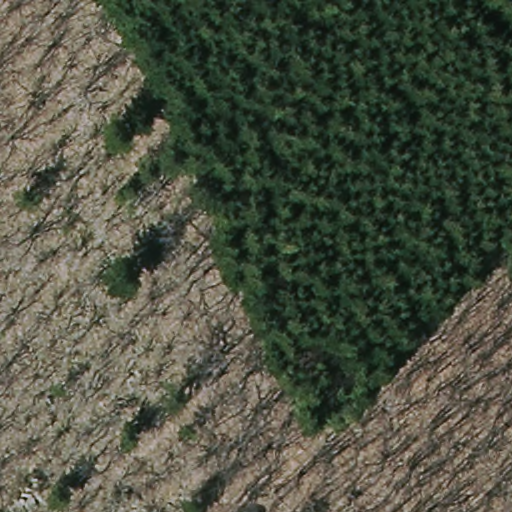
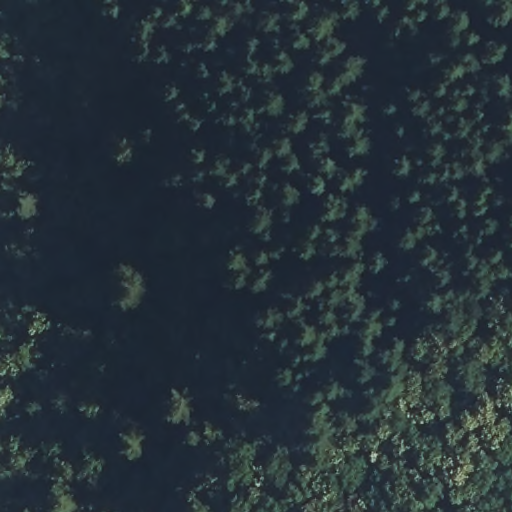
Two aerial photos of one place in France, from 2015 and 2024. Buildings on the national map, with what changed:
[]

